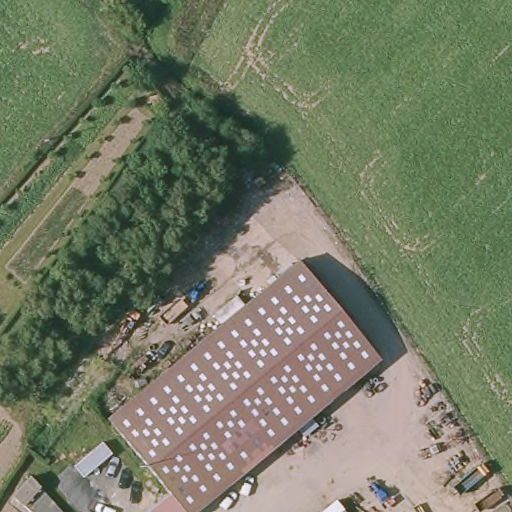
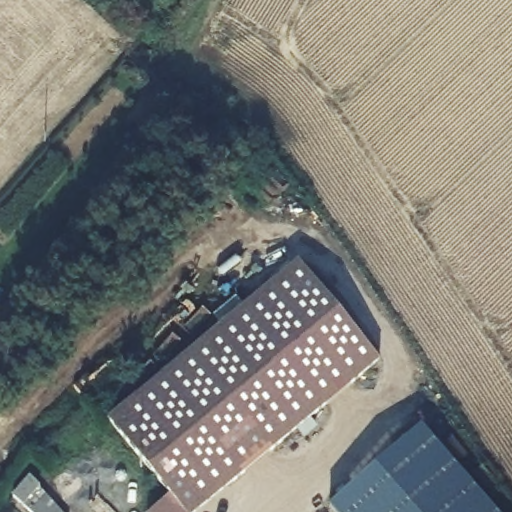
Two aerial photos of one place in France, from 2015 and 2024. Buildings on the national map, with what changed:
unchanged [(379,361),(196,512),(183,512),(106,421),(267,287),(264,283),(271,276),(275,281),(298,262),(379,361)]
new [(494,512),(336,512),(329,505),(421,427),(494,512)]
unchanged [(13,498),(30,478),(61,512),(29,512),(13,498)]

